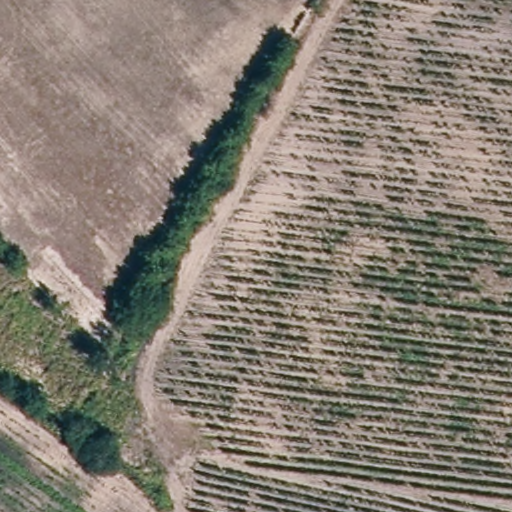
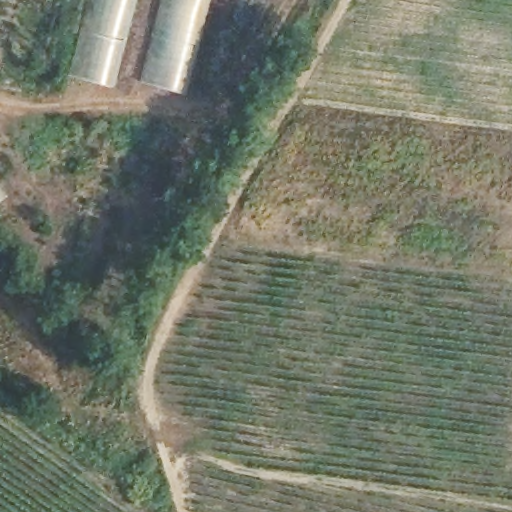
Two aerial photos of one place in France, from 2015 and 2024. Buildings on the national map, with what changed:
new [(86,0),(133,0),(111,86),(68,74),(86,0)]
new [(160,0),(208,0),(185,93),(139,80),(160,0)]

